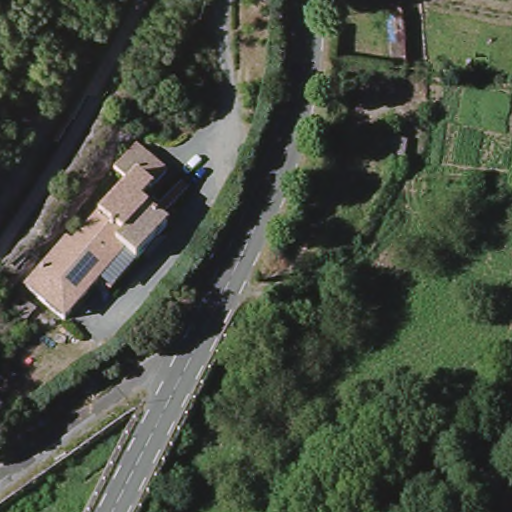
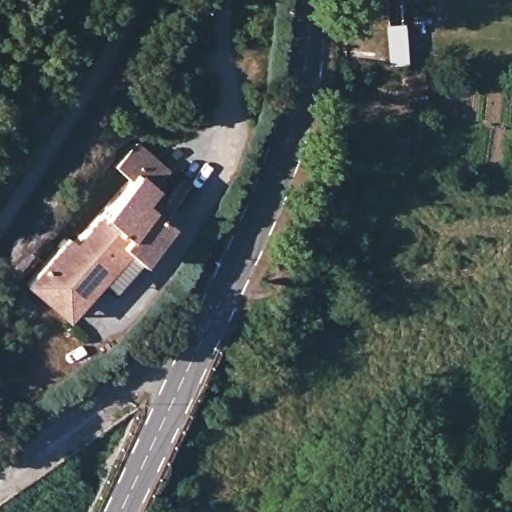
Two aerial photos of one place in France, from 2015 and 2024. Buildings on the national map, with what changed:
unchanged [(27,286),(126,168),(143,147),(173,170),(155,185),(186,210),(143,257),(125,241),(70,321),(27,286)]

